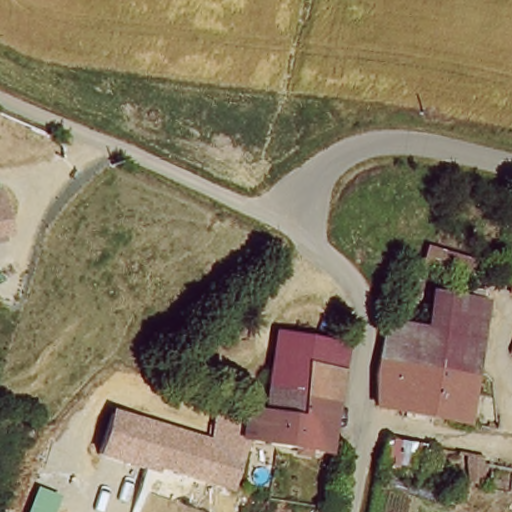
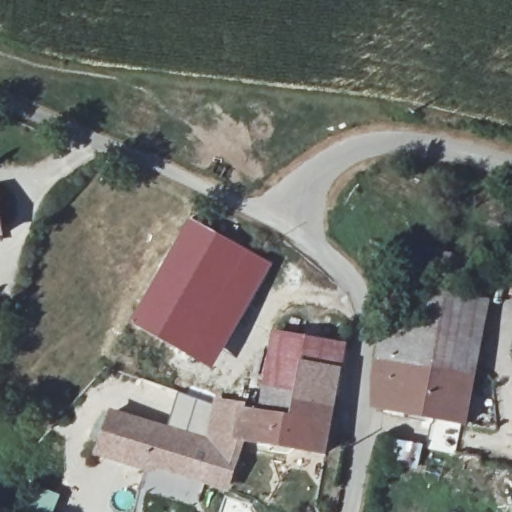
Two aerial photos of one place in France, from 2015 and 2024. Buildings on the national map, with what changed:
unchanged [(7,240),(0,241),(0,195),(7,240)]
new [(274,266),(215,371),(133,325),(192,220),(274,266)]
unchanged [(470,284),(421,267),(427,244),(475,259),(470,284)]
unchanged [(376,407),(378,376),(386,322),(414,328),(420,290),(485,302),(466,424),(376,407)]
demolished [(235,320),(256,322),(253,338),(233,335),(235,320)]
unchanged [(260,409),(274,334),(344,346),(324,453),(270,443),(234,437),(229,468),(209,463),(218,403),(260,409)]
new [(210,402),(207,439),(170,427),(180,392),(210,402)]
unchanged [(230,492),(158,468),(155,474),(97,456),(112,409),(207,439),(210,402),(218,403),(209,463),(229,468),(232,449),(234,437),(240,438),(246,439),(230,492)]

